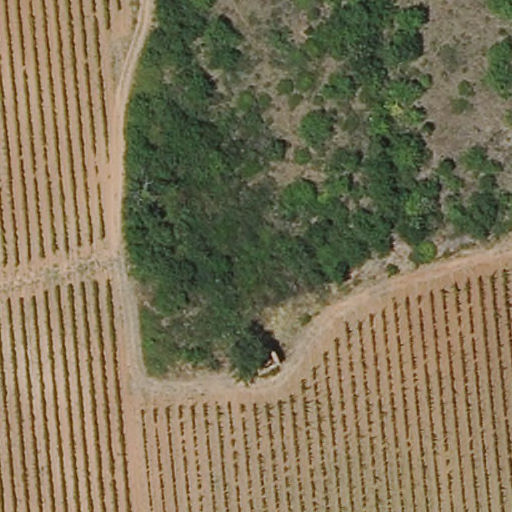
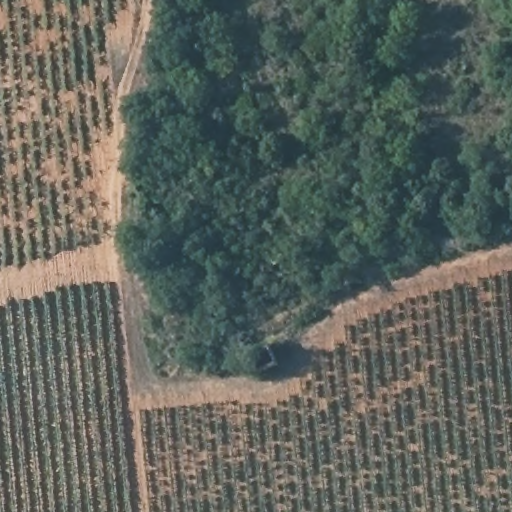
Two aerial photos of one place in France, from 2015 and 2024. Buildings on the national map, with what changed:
unchanged [(281,364),(261,373),(256,348),(271,341),(276,338),(281,364)]

